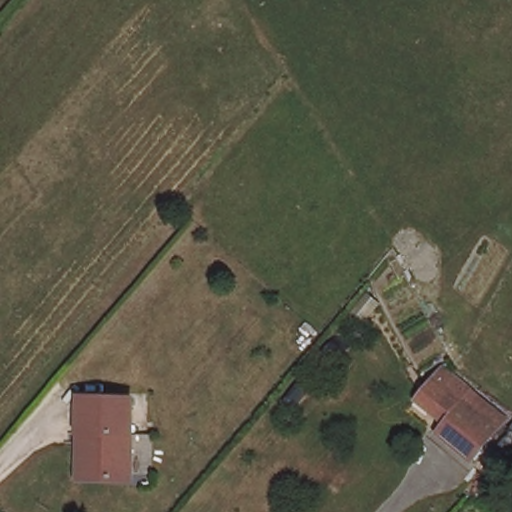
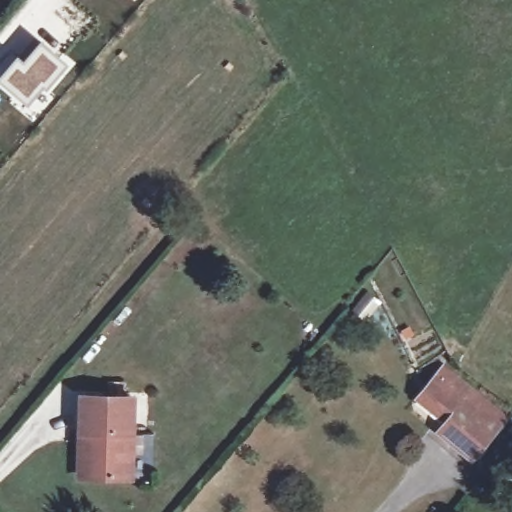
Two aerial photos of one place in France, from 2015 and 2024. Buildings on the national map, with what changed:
new [(25,61),(42,41),(69,64),(48,90),(45,86),(29,106),(0,82),(0,75),(18,56),(25,61)]
unchanged [(448,423),(420,398),(447,367),(508,420),(500,430),(467,402),(448,423)]
unchanged [(82,426),(82,392),(133,392),(135,473),(93,473),(83,473),(82,426)]
unchanged [(448,423),(467,402),(500,430),(475,459),(442,432),(448,423)]

